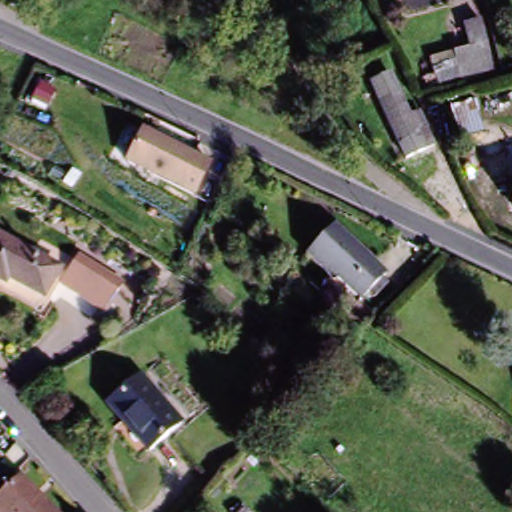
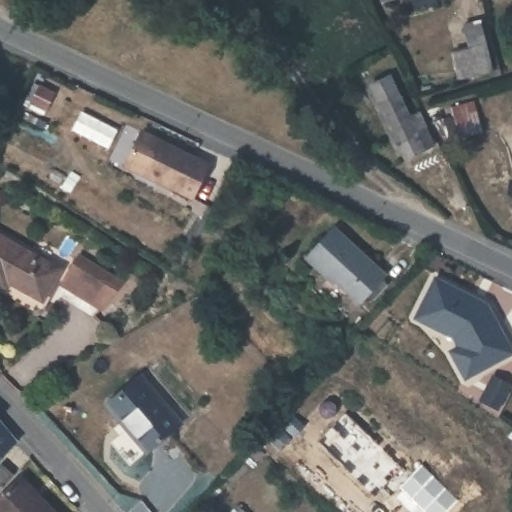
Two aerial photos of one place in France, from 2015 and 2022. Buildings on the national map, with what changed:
unchanged [(177,4),(167,0),(181,0),(177,4)]
unchanged [(480,18),(491,66),(460,73),(455,46),(470,43),(465,21),(480,18)]
unchanged [(382,82),(390,99),(392,99),(403,122),(412,118),(426,151),(398,164),(364,89),(382,82)]
unchanged [(473,97),(482,127),(458,134),(450,103),(473,97)]
unchanged [(210,163),(193,197),(126,164),(142,131),(210,163)]
unchanged [(512,185),(512,192),(510,185),(512,185)]
unchanged [(381,275),(354,305),(324,277),(322,279),(301,258),(331,228),(381,275)]
unchanged [(65,284),(48,310),(43,307),(47,300),(11,281),(8,286),(0,282),(0,236),(63,270),(70,274),(80,262),(83,257),(125,283),(122,288),(107,311),(65,284)]
new [(478,297),(478,299),(490,305),(492,304),(512,343),(512,356),(470,378),(455,351),(465,346),(460,337),(420,317),(440,278),(478,297)]
unchanged [(140,379),(181,427),(149,454),(123,424),(121,426),(106,408),(140,379)]
unchanged [(0,466),(0,453),(7,459),(0,466)]
unchanged [(4,494),(0,491),(0,476),(11,464),(22,475),(4,494)]
unchanged [(30,477),(63,512),(0,512),(0,506),(30,477)]
unchanged [(232,512),(240,503),(249,512),(232,512)]

